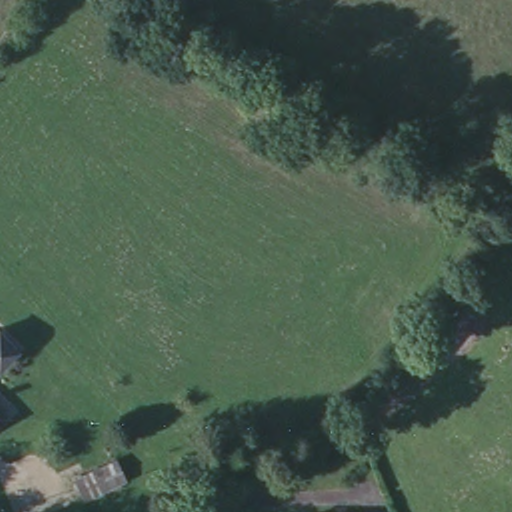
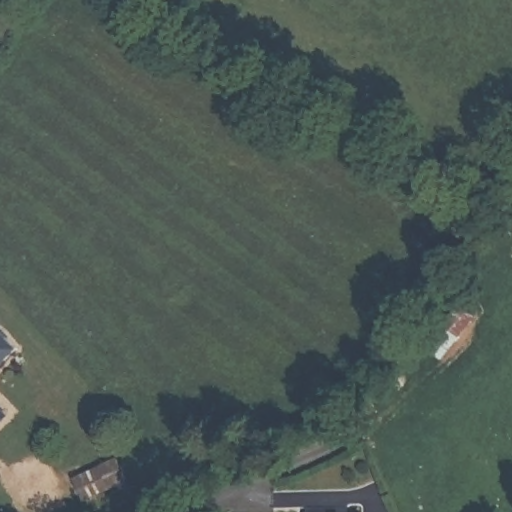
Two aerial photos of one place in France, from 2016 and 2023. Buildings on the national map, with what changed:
unchanged [(480,315),(445,358),(429,345),(463,302),(480,315)]
unchanged [(22,337),(2,358),(0,357),(0,319),(1,317),(22,337)]
unchanged [(11,405),(0,417),(0,393),(11,405)]
unchanged [(115,457),(125,476),(82,496),(74,477),(115,457)]

